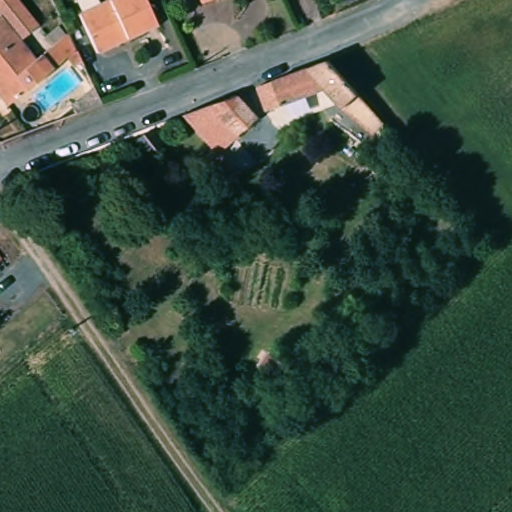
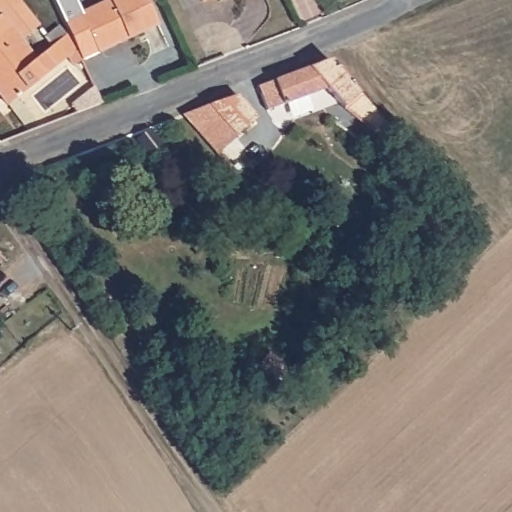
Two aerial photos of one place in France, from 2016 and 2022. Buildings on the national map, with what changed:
unchanged [(30,25),(17,36),(11,40),(0,26),(0,0),(10,0),(30,25)]
unchanged [(156,25),(91,50),(75,10),(101,0),(145,0),(156,25)]
unchanged [(11,40),(17,36),(36,58),(65,35),(73,52),(2,109),(0,106),(0,26),(11,40)]
unchanged [(329,91),(285,107),(276,83),(312,70),(332,64),(391,128),(381,135),(344,111),(329,91)]
unchanged [(73,114),(69,104),(94,92),(99,104),(73,114)]
unchanged [(230,94),(251,118),(243,126),(262,149),(256,158),(232,177),(181,110),(230,94)]
unchanged [(150,129),(163,143),(149,156),(135,141),(150,129)]

